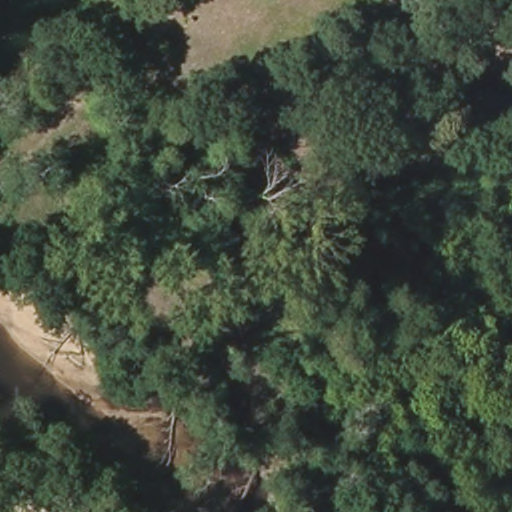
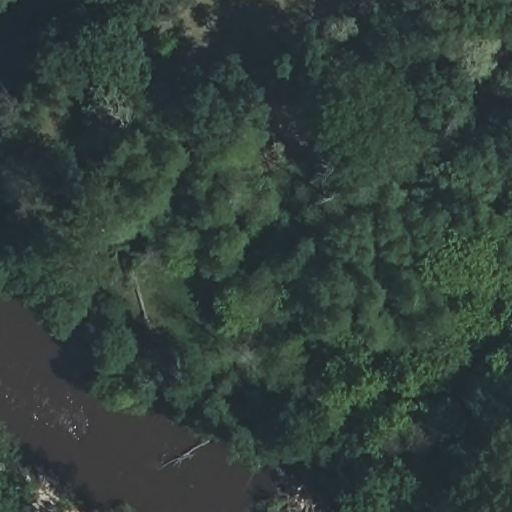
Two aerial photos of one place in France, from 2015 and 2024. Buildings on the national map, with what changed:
[]

